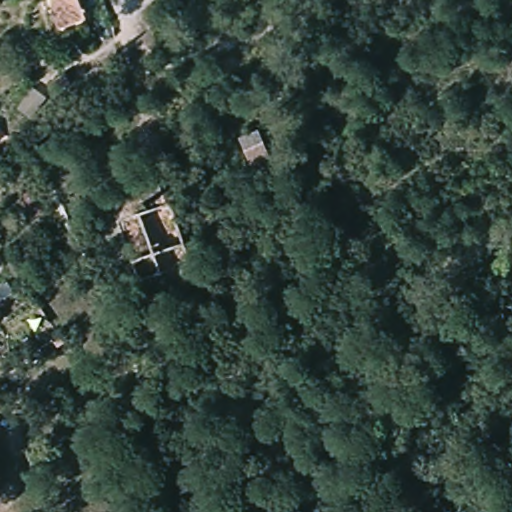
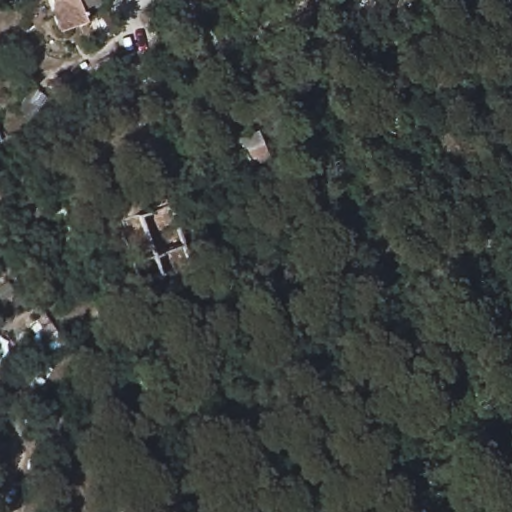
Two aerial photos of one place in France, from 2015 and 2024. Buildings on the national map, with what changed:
unchanged [(57,31),(53,16),(57,0),(78,0),(86,21),(57,31)]
unchanged [(241,148),(259,143),(265,159),(246,165),(241,148)]

